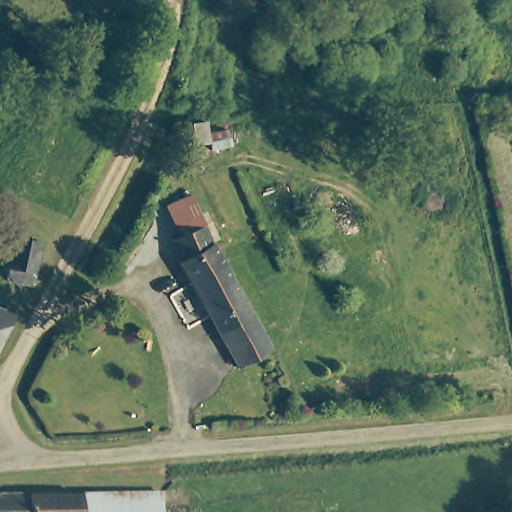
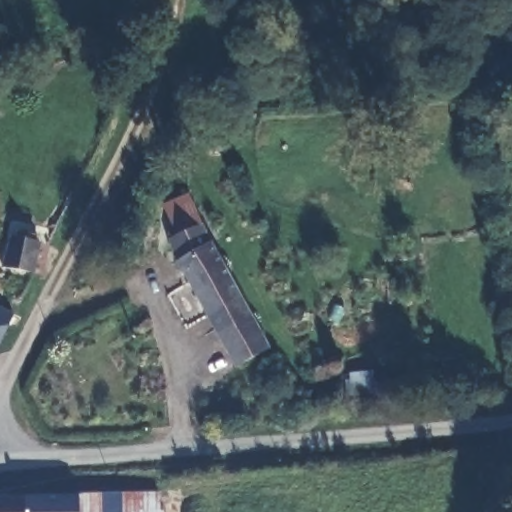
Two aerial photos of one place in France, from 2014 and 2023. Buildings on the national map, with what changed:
unchanged [(170,251),(165,234),(175,227),(158,197),(182,187),(197,216),(235,290),(202,309),(170,251)]
unchanged [(7,235),(35,238),(26,278),(0,275),(0,253),(7,235)]
unchanged [(231,359),(202,309),(235,290),(262,343),(231,359)]
unchanged [(0,347),(0,306),(12,311),(0,347)]
unchanged [(158,495),(159,512),(0,512),(0,497),(158,495)]

